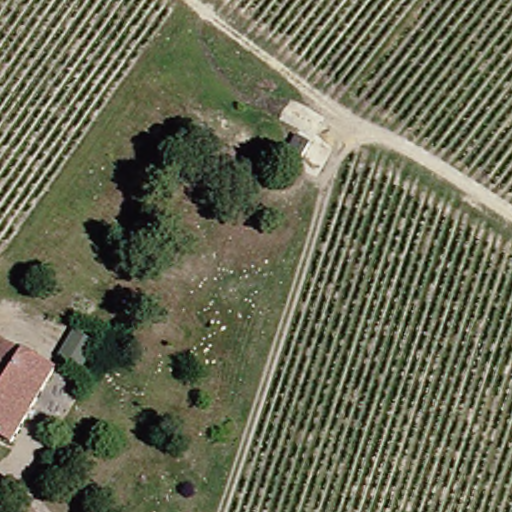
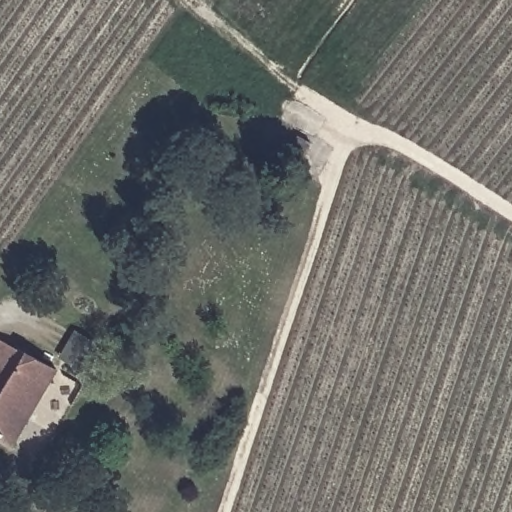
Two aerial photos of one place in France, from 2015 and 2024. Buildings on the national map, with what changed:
unchanged [(108,345),(93,364),(76,351),(90,331),(108,345)]
unchanged [(54,370),(5,446),(0,443),(0,338),(54,370)]

